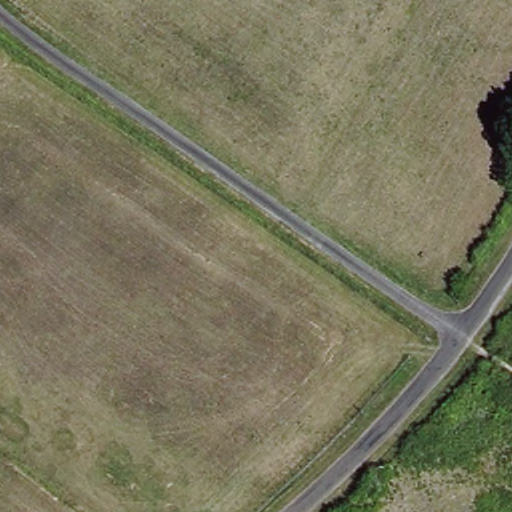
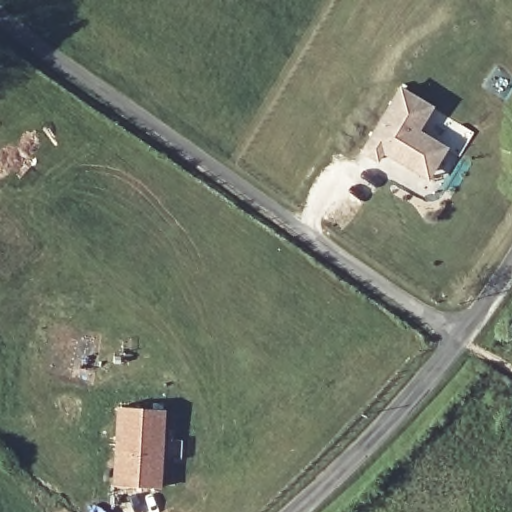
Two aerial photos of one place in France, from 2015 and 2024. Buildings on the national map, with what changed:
new [(434,106),(420,130),(450,147),(428,182),(383,154),(377,164),(360,152),(398,85),(434,106)]
new [(166,411),(162,487),(111,484),(115,407),(166,411)]

